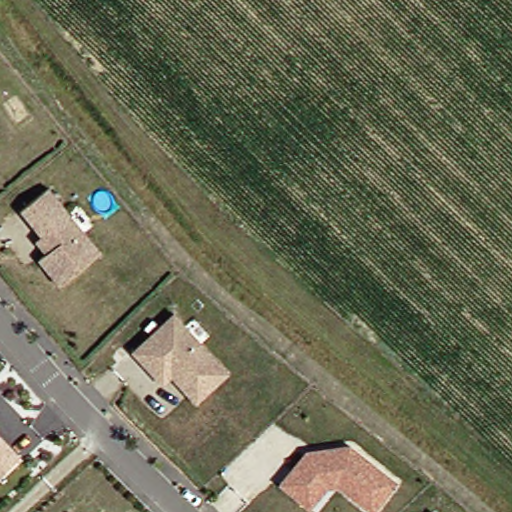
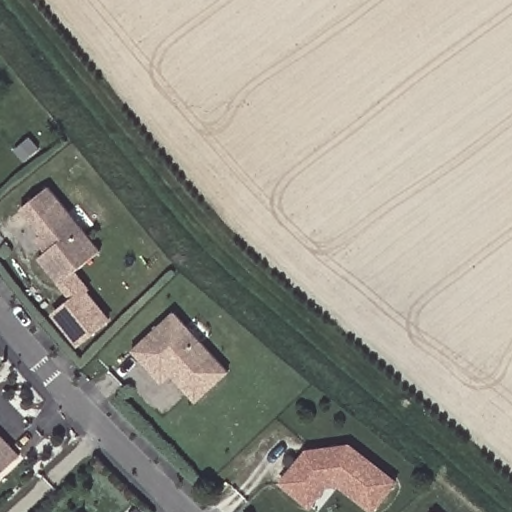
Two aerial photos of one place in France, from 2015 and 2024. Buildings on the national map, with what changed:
unchanged [(39,237),(18,211),(45,189),(98,253),(57,286),(36,260),(44,254),(33,242),(39,237)]
new [(51,315),(69,299),(57,286),(77,270),(92,289),(89,291),(113,319),(79,347),(51,315)]
unchanged [(142,366),(130,353),(172,315),(226,375),(194,404),(169,377),(160,386),(142,366)]
unchanged [(17,458),(0,474),(0,439),(5,445),(17,458)]
unchanged [(308,505),(305,502),(279,481),(302,453),(306,456),(312,448),(348,444),(394,480),(371,509),(337,482),(325,485),(308,505)]

